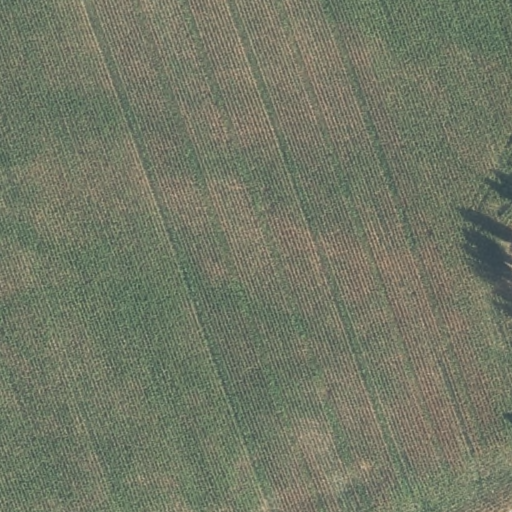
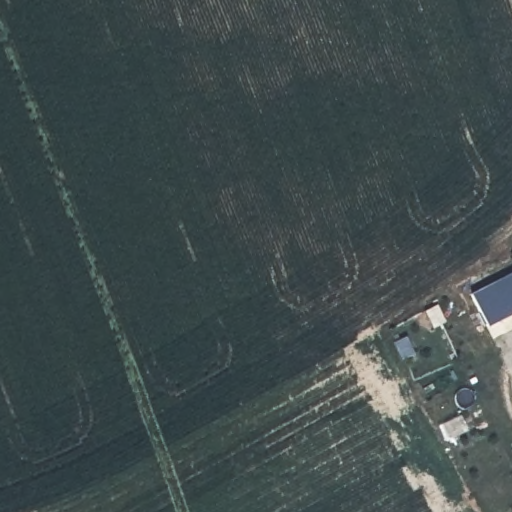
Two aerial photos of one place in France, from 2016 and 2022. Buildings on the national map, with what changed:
new [(471,289),(512,269),(512,311),(488,323),(471,289)]

